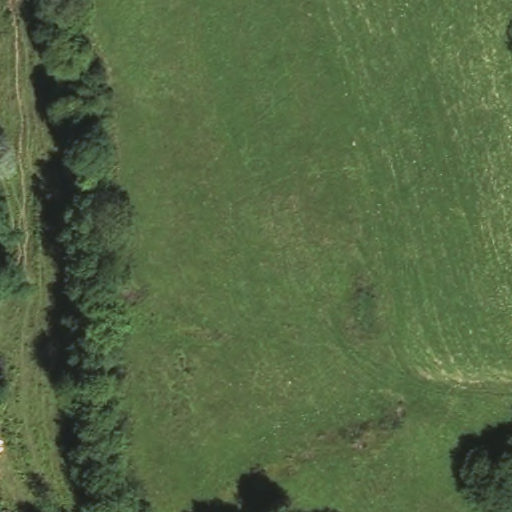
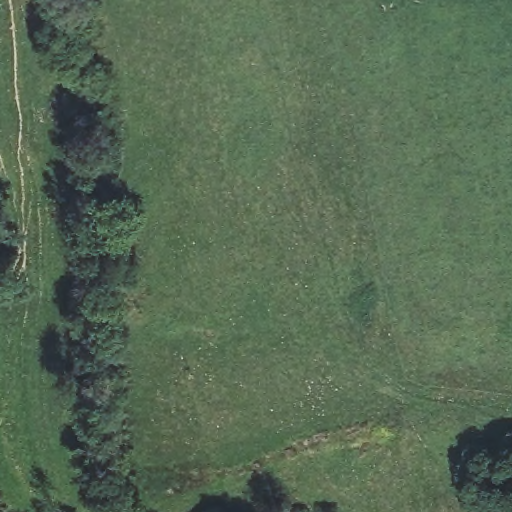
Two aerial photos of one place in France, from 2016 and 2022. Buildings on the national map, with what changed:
[]

